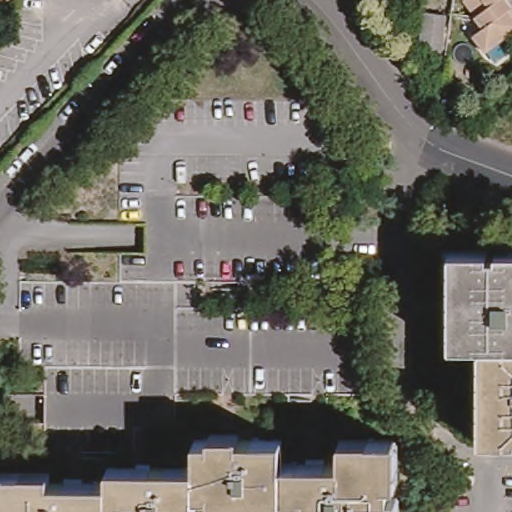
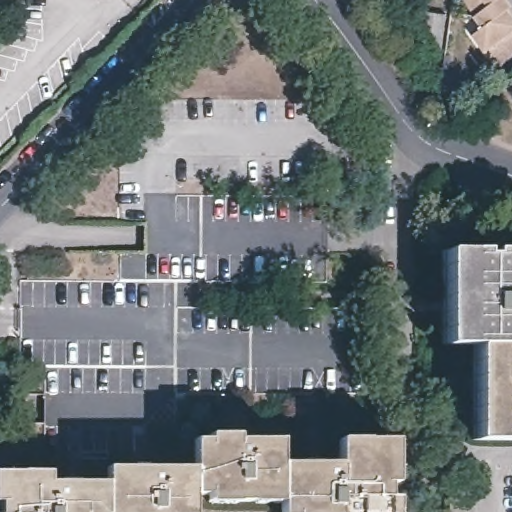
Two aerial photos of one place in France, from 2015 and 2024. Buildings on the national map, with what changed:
unchanged [(488,43),(475,26),(485,19),(477,7),(487,0),(512,0),(512,25),(488,43)]
unchanged [(443,46),(422,43),(427,6),(448,10),(443,46)]
unchanged [(441,244),(487,246),(487,252),(495,252),(495,247),(512,248),(512,340),(467,338),(439,337),(439,306),(440,291),(441,244)]
unchanged [(511,431),(511,436),(465,434),(467,338),(512,340),(512,431),(511,431)]
unchanged [(2,503),(2,473),(3,472),(4,471),(58,471),(59,482),(117,481),(117,467),(205,466),(205,438),(293,439),(293,462),(352,462),(352,439),(399,439),(408,440),(408,484),(399,484),(399,498),(407,498),(407,512),(293,512),(293,503),(266,503),(249,502),(221,502),(220,495),(205,495),(205,512),(11,512),(11,503),(2,503)]

